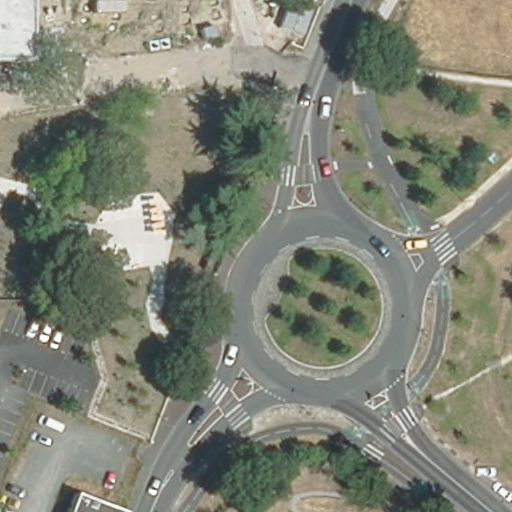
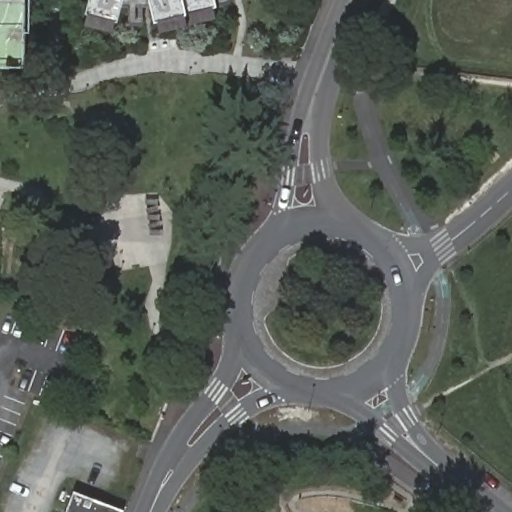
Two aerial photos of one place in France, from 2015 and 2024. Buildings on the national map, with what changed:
demolished [(0,41),(0,0),(7,0),(3,41),(0,41)]
new [(22,59),(0,59),(0,0),(23,0),(22,59)]
new [(113,28),(81,19),(86,0),(120,0),(113,28)]
new [(149,0),(183,0),(189,21),(156,29),(149,0)]
new [(183,0),(215,0),(218,14),(189,21),(183,0)]
unchanged [(64,500),(71,483),(121,501),(116,512),(59,512),(61,506),(64,500)]

